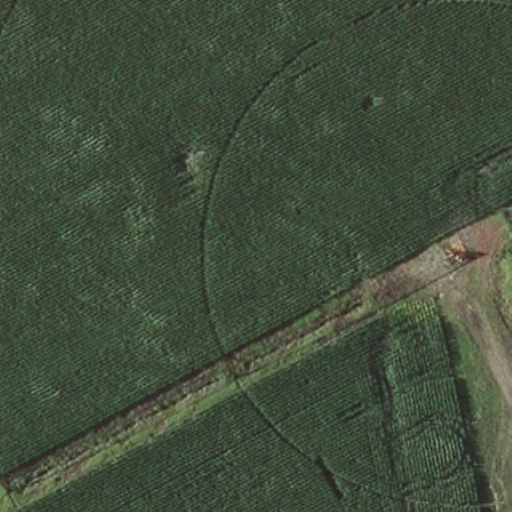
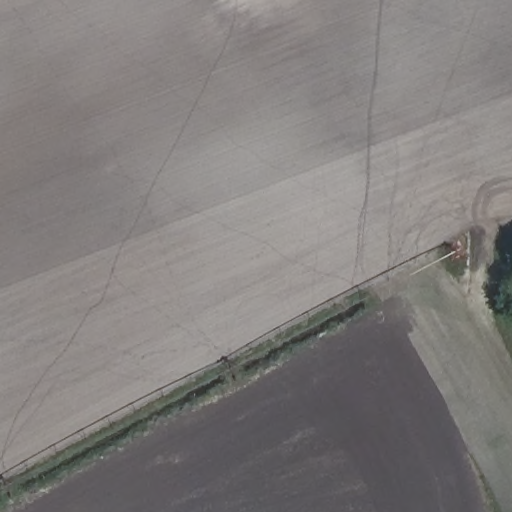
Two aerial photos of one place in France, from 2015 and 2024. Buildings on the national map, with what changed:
[]

